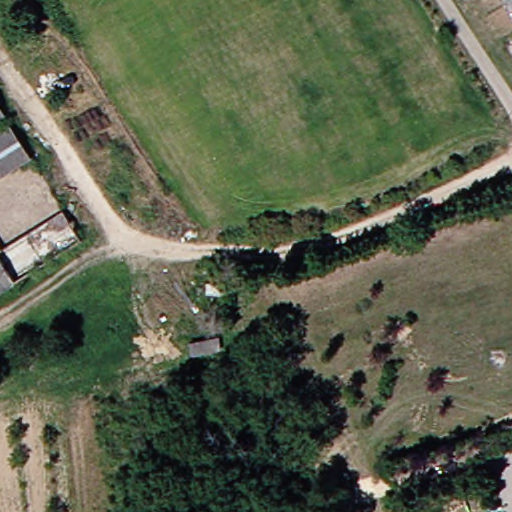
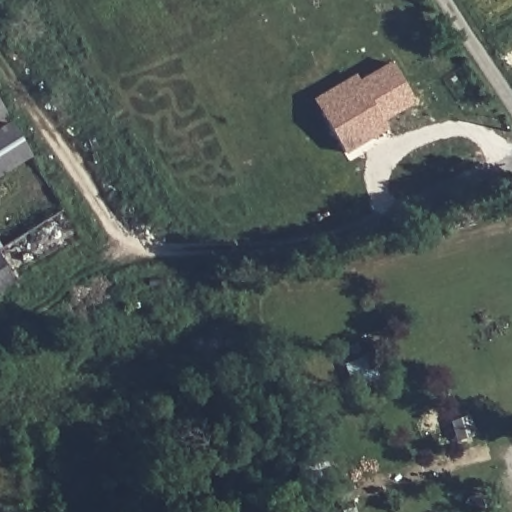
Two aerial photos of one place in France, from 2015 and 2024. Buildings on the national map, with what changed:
demolished [(503,0),(512,0),(512,16),(503,0)]
new [(387,128),(345,153),(314,98),(357,73),(360,79),(390,60),(415,103),(384,121),(387,128)]
unchanged [(0,122),(0,94),(12,115),(0,122)]
unchanged [(39,157),(0,180),(0,137),(19,125),(39,157)]
unchanged [(0,296),(0,238),(7,250),(72,211),(90,241),(0,296)]
unchanged [(222,347),(194,352),(192,340),(220,335),(222,347)]

